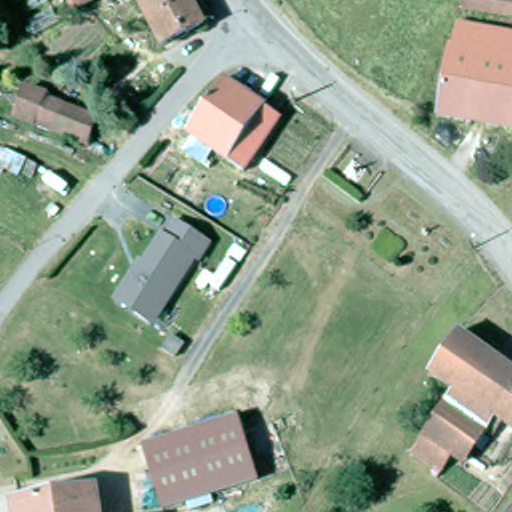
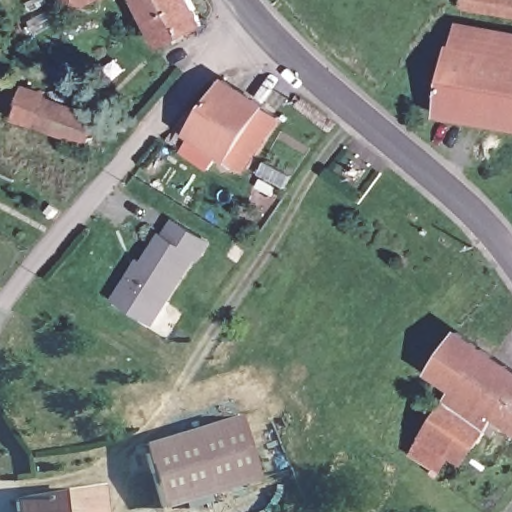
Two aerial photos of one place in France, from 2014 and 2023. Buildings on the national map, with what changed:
unchanged [(67,6),(64,0),(78,0),(67,6)]
unchanged [(157,42),(134,0),(190,0),(200,19),(157,42)]
unchanged [(461,0),(512,0),(512,16),(460,9),(461,0)]
unchanged [(437,112),(450,47),(452,49),(457,26),(512,36),(512,128),(480,122),(436,115),(437,112)]
unchanged [(180,102),(183,105),(185,102),(201,112),(224,77),(264,104),(230,157),(195,134),(185,149),(160,133),(180,102)]
unchanged [(90,111),(80,137),(20,115),(31,88),(90,111)]
unchanged [(246,165),(230,157),(264,104),(280,115),(246,165)]
unchanged [(113,297),(137,256),(142,258),(160,230),(165,232),(174,217),(210,241),(199,263),(195,260),(153,325),(113,297)]
unchanged [(438,412),(459,386),(431,365),(463,326),(507,361),(478,402),(458,428),(438,412)]
unchanged [(512,427),(478,402),(507,361),(512,365),(512,427)]
unchanged [(412,447),(438,412),(458,428),(462,432),(437,463),(412,447)]
unchanged [(245,422),(258,483),(190,498),(155,506),(143,443),(186,435),(245,422)]
unchanged [(93,482),(97,512),(13,512),(11,496),(93,482)]

